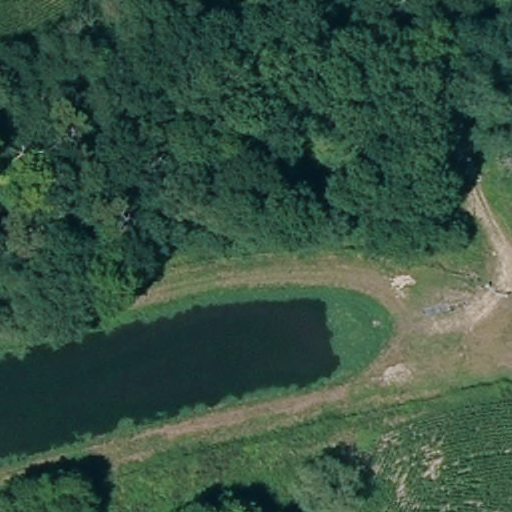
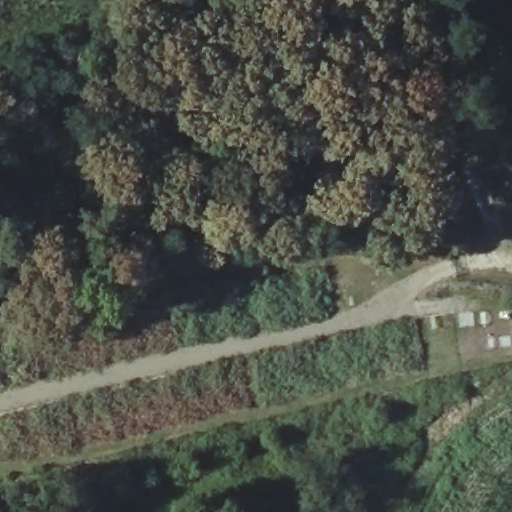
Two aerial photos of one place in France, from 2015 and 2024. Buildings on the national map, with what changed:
[]

